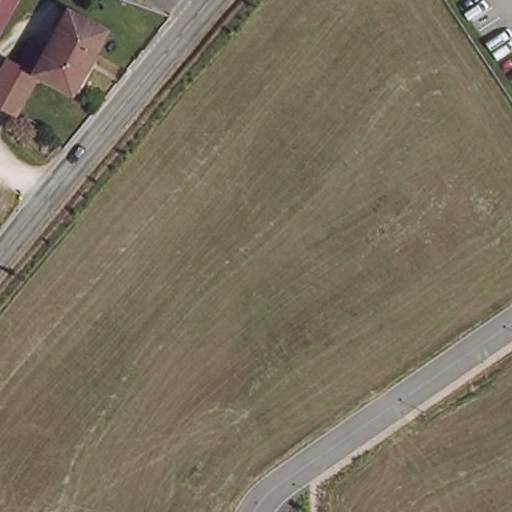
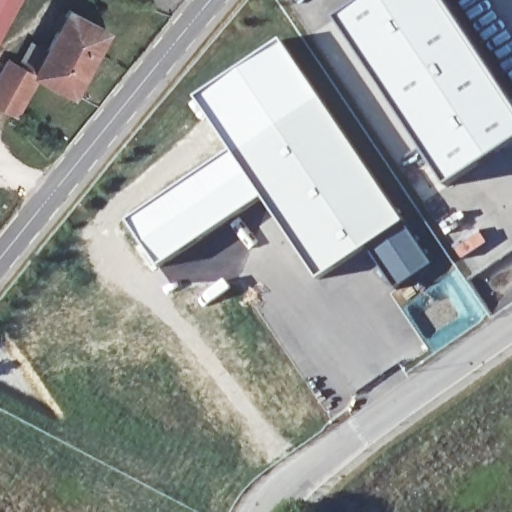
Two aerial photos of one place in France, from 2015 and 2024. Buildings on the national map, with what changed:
unchanged [(0,33),(0,0),(10,0),(16,3),(0,33)]
unchanged [(10,0),(18,0),(16,3),(10,0)]
new [(445,0),(512,101),(512,145),(446,188),(335,20),(364,0),(445,0)]
unchanged [(57,26),(69,4),(106,25),(95,47),(57,26)]
unchanged [(95,47),(72,87),(35,67),(21,60),(20,60),(31,38),(46,46),(57,26),(95,47)]
unchanged [(0,74),(10,57),(20,62),(38,72),(17,110),(0,101),(0,74)]
new [(316,91),(430,260),(393,286),(365,247),(317,277),(230,150),(316,91)]

